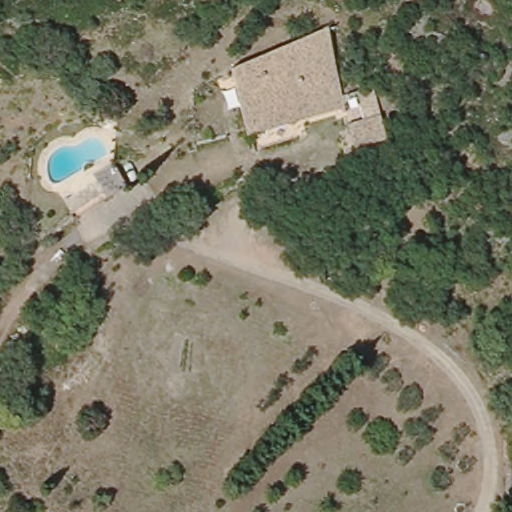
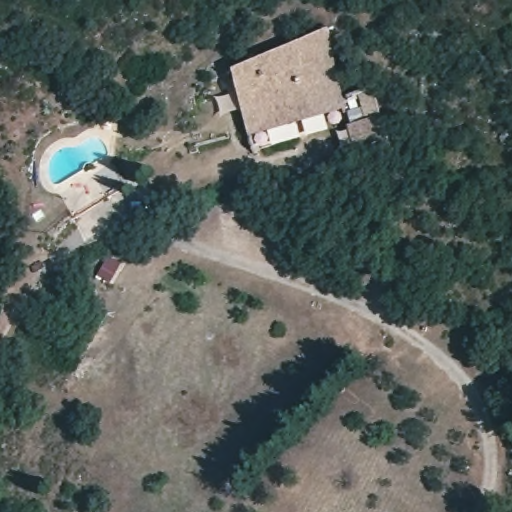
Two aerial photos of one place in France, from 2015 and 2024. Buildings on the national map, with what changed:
unchanged [(338,105),(243,133),(227,69),(324,27),(338,105)]
unchanged [(376,116),(360,120),(352,91),(368,87),(376,116)]
unchanged [(74,218),(55,188),(60,185),(109,154),(128,185),(74,218)]

